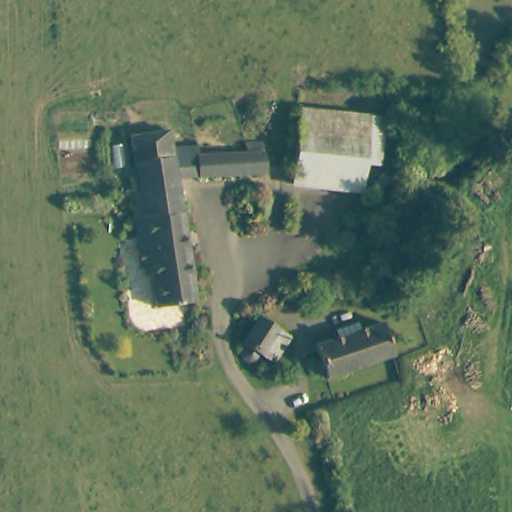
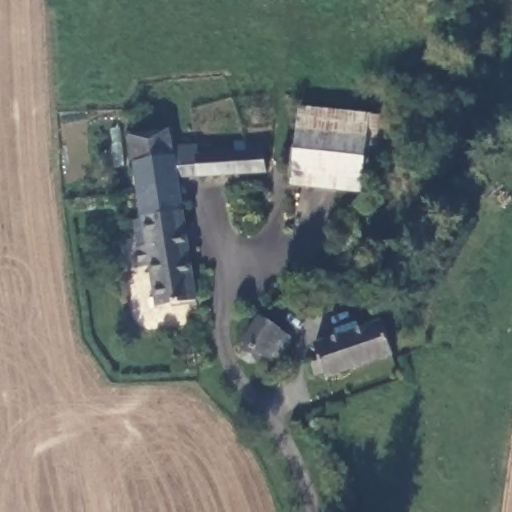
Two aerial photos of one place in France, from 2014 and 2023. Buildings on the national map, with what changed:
unchanged [(370,115),(364,194),(297,190),(303,109),(370,115)]
unchanged [(171,131),(199,303),(175,307),(159,309),(132,136),(171,131)]
unchanged [(241,152),(242,143),(259,139),(261,177),(198,180),(196,156),(241,152)]
unchanged [(287,321),(268,348),(264,345),(257,355),(246,346),(247,337),(242,332),(264,302),(287,321)]
unchanged [(330,334),(352,324),(355,330),(377,318),(382,328),(391,350),(328,379),(313,348),(333,340),(330,334)]

